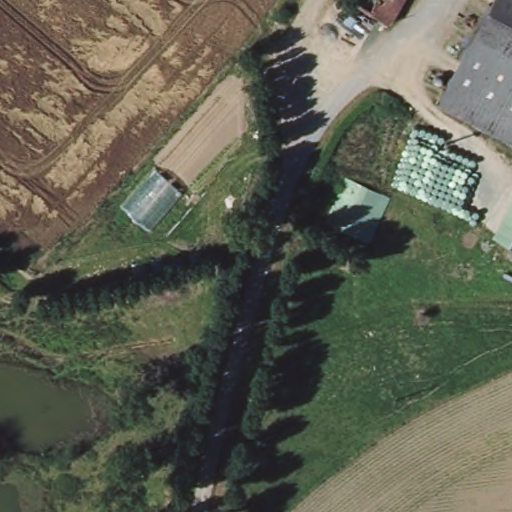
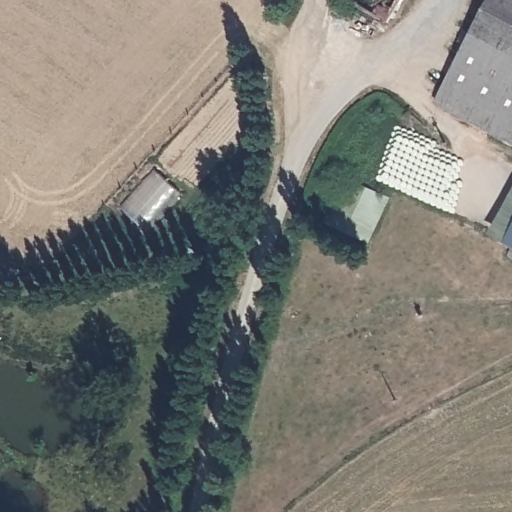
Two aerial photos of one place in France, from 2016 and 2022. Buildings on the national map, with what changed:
unchanged [(349,0),(389,0),(378,17),(349,0)]
unchanged [(493,0),(512,0),(512,131),(440,87),(493,0)]
unchanged [(512,229),(512,239),(507,236),(512,229)]
unchanged [(366,240),(361,282),(319,277),(325,235),(366,240)]

